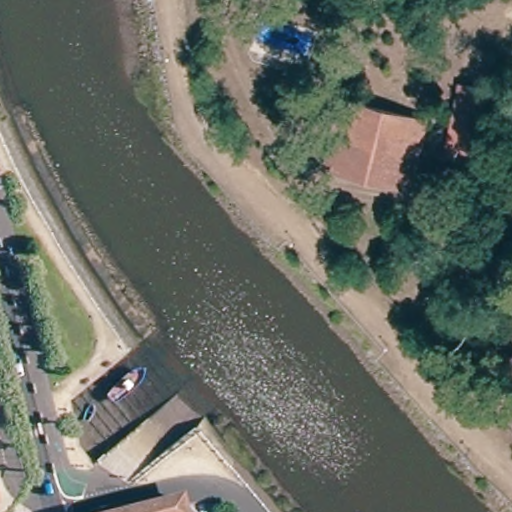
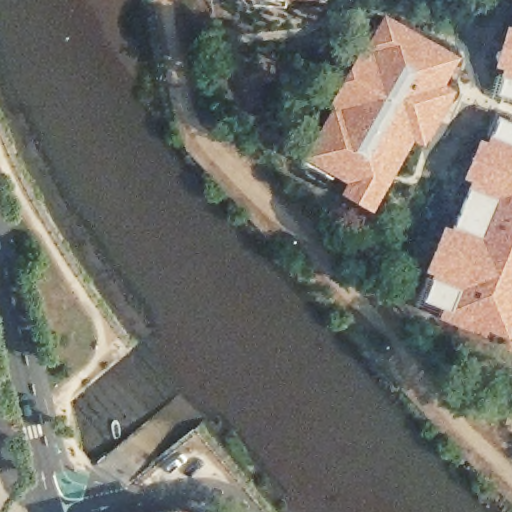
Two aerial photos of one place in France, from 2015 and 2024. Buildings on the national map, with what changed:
new [(322,1),(302,0),(322,0),(322,1)]
new [(455,53),(440,82),(450,86),(424,135),(412,129),(372,205),(300,166),(386,15),(455,53)]
new [(497,85),(512,31),(512,90),(497,85)]
demolished [(491,158),(450,149),(461,88),(503,97),(491,158)]
demolished [(410,192),(327,175),(341,108),(424,124),(410,192)]
new [(438,266),(429,262),(481,137),(490,141),(502,111),(512,115),(512,323),(510,329),(492,323),(490,329),(445,312),(448,303),(426,296),(438,266)]
demolished [(505,370),(512,360),(512,376),(505,370)]

